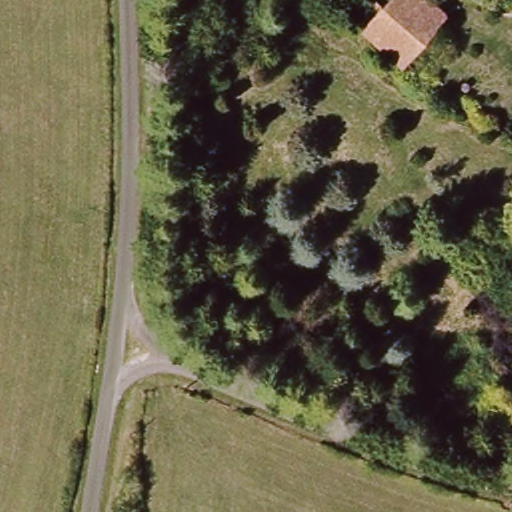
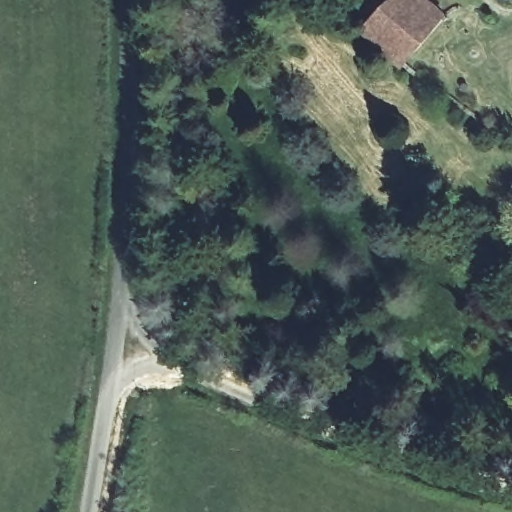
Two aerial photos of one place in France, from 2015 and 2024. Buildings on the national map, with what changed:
unchanged [(379,3),(383,0),(426,0),(419,5),(440,27),(397,77),(353,37),(379,3)]

